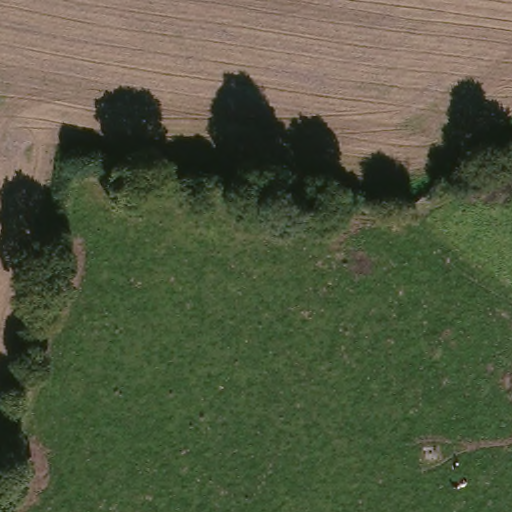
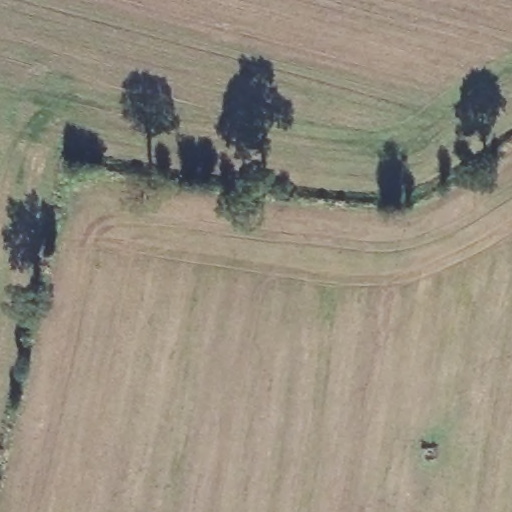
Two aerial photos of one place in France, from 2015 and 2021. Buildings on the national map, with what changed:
[]

